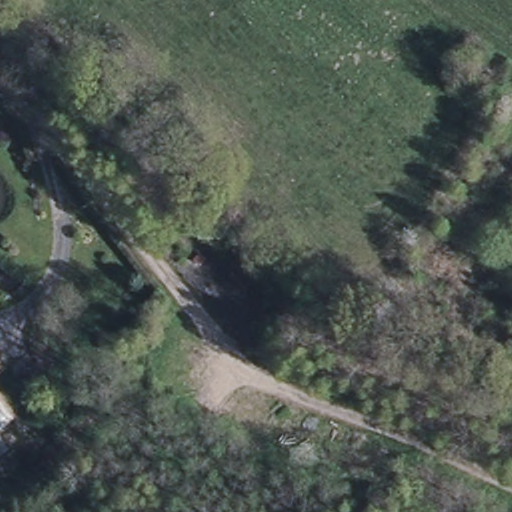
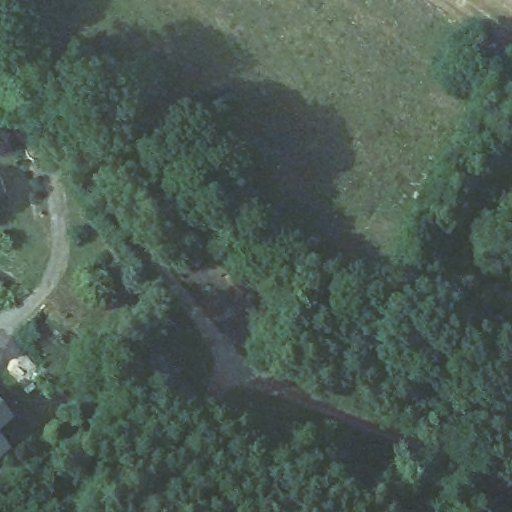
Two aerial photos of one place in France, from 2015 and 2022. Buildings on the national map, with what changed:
unchanged [(4,413),(0,416),(0,407),(4,413)]

